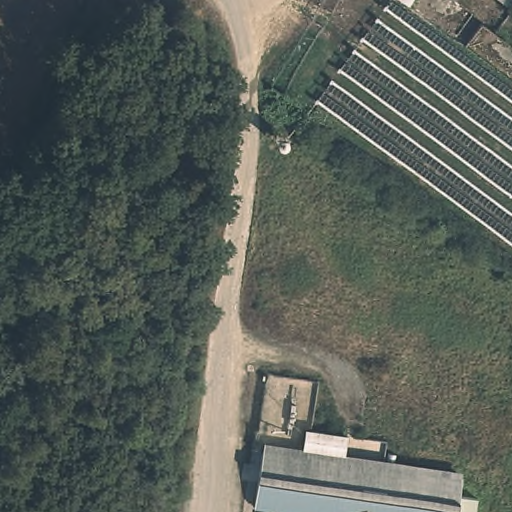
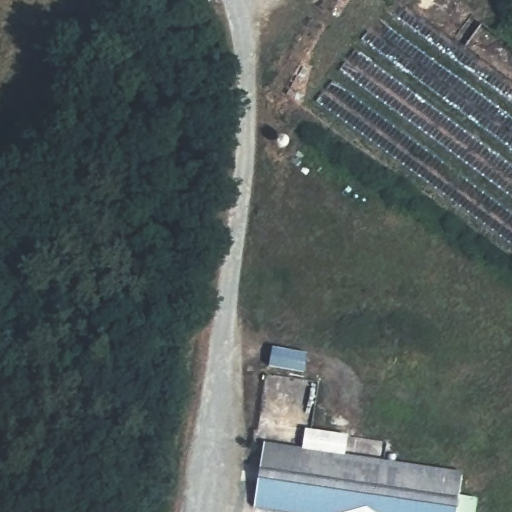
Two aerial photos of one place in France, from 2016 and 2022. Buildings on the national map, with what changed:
unchanged [(307,425),(346,430),(343,456),(305,450),(307,425)]
unchanged [(259,498),(266,446),(305,450),(343,456),(462,472),(461,488),(479,491),(477,510),(458,507),(457,512),(335,512),(335,509),(259,498)]

